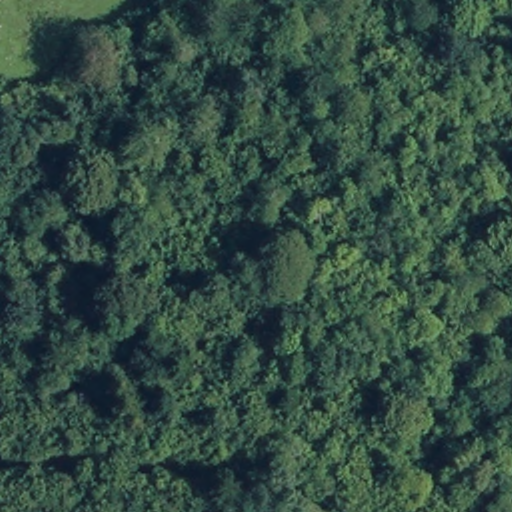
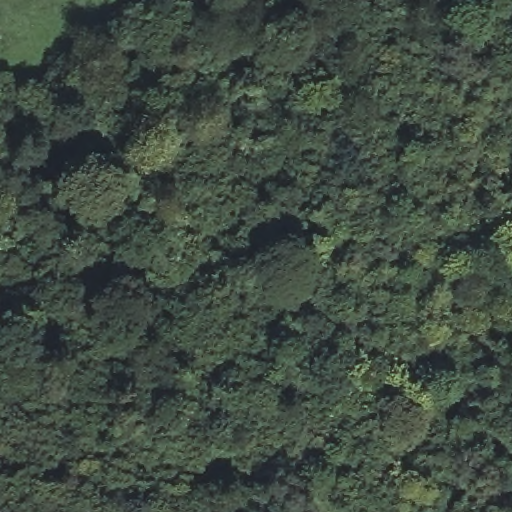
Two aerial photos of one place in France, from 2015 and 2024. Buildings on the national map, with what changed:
[]

